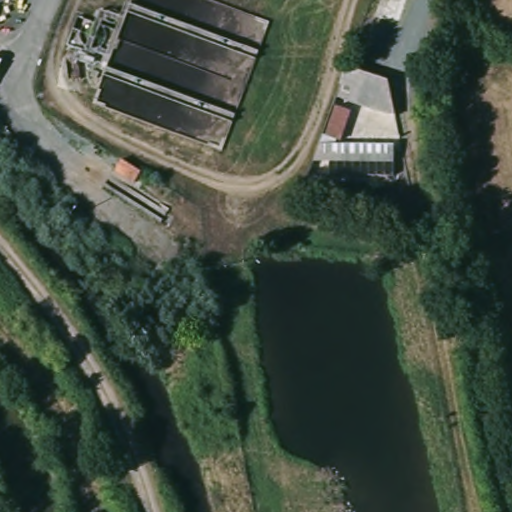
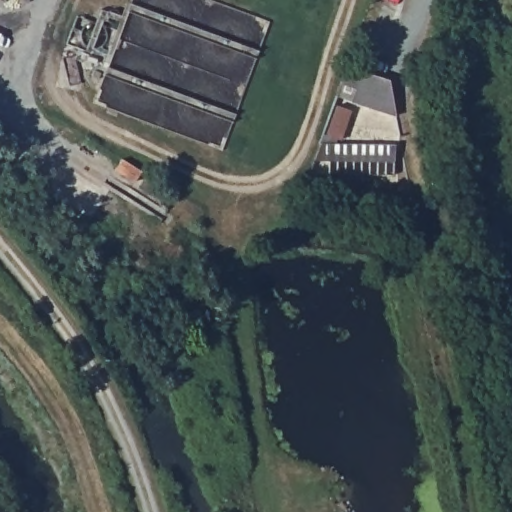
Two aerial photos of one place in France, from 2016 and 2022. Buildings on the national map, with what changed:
unchanged [(5,8),(0,6),(0,0),(7,0),(5,8)]
unchanged [(385,74),(396,127),(365,127),(369,110),(357,105),(345,136),(393,140),(393,167),(313,163),(346,65),(385,74)]

